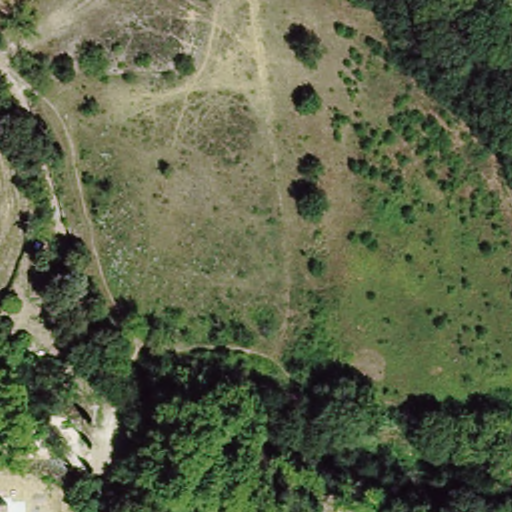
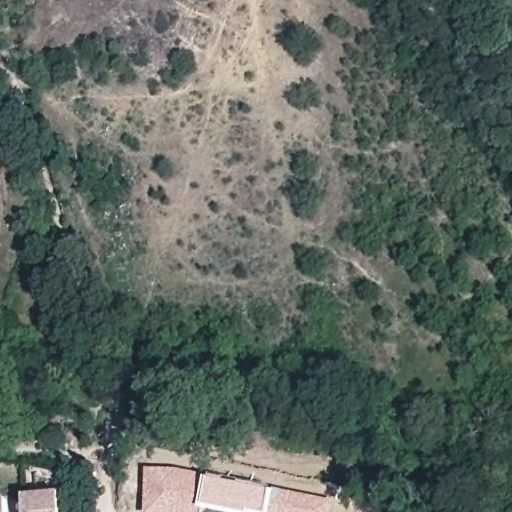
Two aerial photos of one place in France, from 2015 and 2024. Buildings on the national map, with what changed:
new [(145,467),(200,473),(199,492),(203,492),(201,510),(201,512),(143,512),(145,467)]
new [(203,492),(207,477),(276,489),(271,512),(213,512),(201,510),(203,492)]
new [(276,489),(336,502),(333,512),(271,512),(276,489)]
new [(63,512),(26,512),(25,497),(62,493),(63,512)]
unchanged [(9,512),(0,512),(0,500),(7,499),(9,512)]

